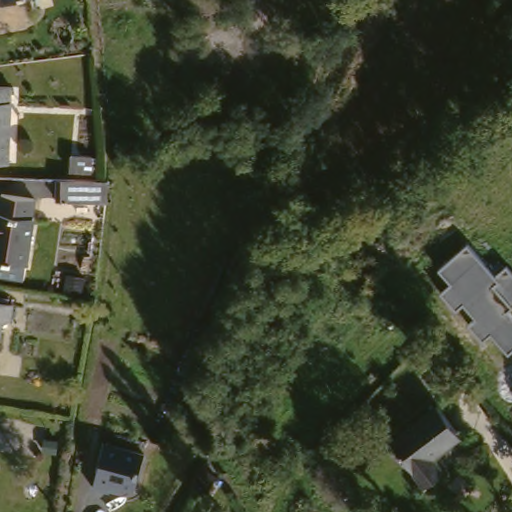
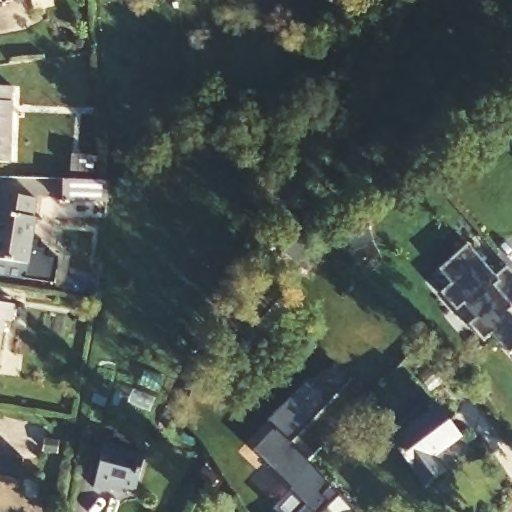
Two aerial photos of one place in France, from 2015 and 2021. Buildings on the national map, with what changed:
unchanged [(20,80),(21,153),(0,154),(0,80),(20,80)]
unchanged [(70,172),(116,175),(115,200),(69,199),(70,172)]
unchanged [(45,196),(39,265),(33,265),(31,274),(1,270),(0,270),(0,253),(3,253),(8,192),(45,196)]
unchanged [(490,333),(484,338),(470,323),(476,316),(465,303),(457,310),(440,291),(451,281),(440,266),(469,242),(496,274),(507,266),(512,272),(512,305),(506,309),(512,316),(512,352),(509,354),(490,333)]
unchanged [(16,296),(15,310),(9,309),(1,358),(0,358),(0,295),(16,296)]
new [(296,512),(303,505),(287,490),(290,488),(251,450),(273,427),(266,421),(308,378),(315,385),(334,365),(350,381),(290,443),(330,485),(340,494),(322,512),(296,512)]
unchanged [(447,402),(457,418),(410,453),(398,435),(447,402)]
unchanged [(457,418),(470,435),(440,455),(451,473),(431,485),(410,453),(457,418)]
unchanged [(136,490),(96,488),(107,441),(146,448),(136,490)]

